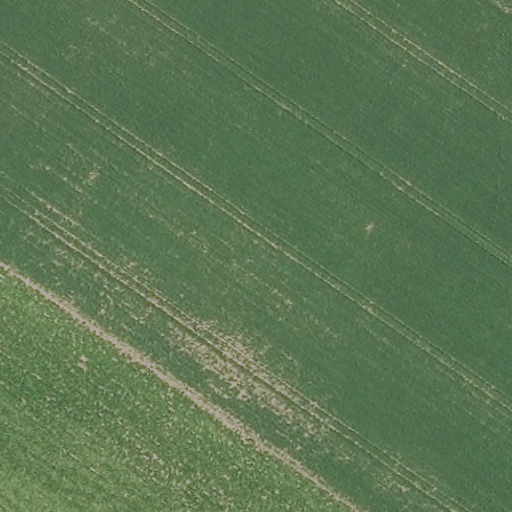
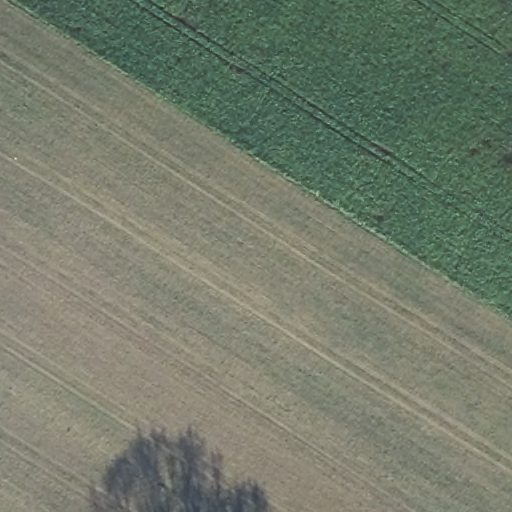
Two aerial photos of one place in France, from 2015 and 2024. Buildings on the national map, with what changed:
[]

